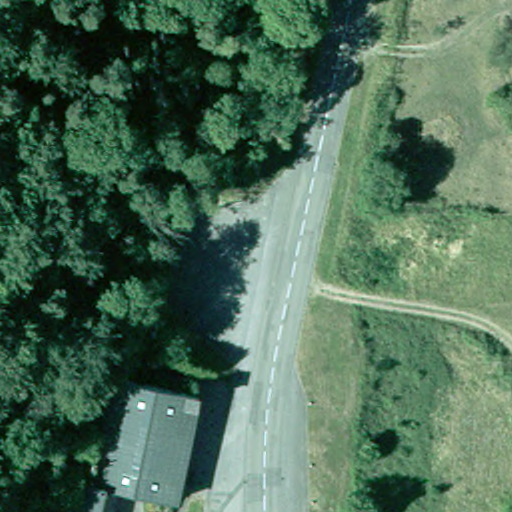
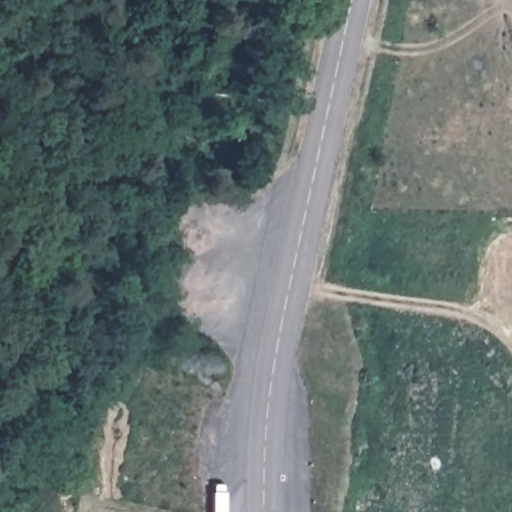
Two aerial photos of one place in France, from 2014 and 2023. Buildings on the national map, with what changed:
demolished [(92,487),(110,392),(113,380),(198,393),(178,503),(102,489),(92,487)]
demolished [(75,485),(92,487),(102,489),(98,512),(69,512),(75,485)]

